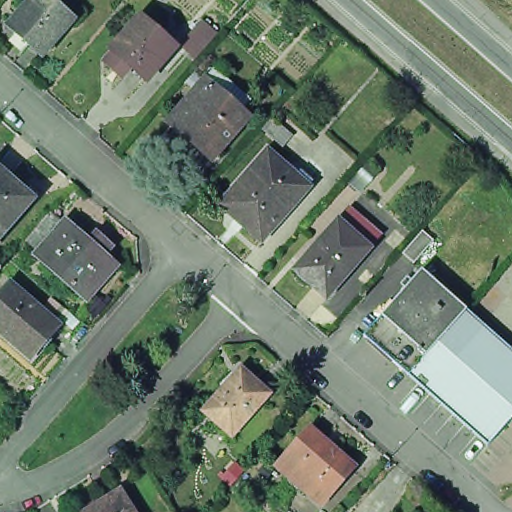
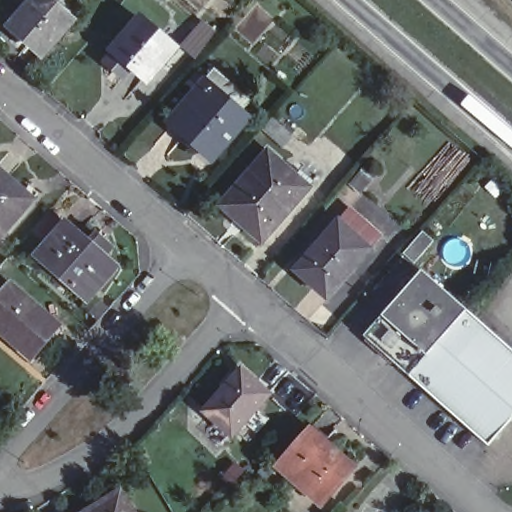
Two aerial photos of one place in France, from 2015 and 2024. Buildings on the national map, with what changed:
unchanged [(10,24),(31,0),(53,0),(72,16),(41,51),(10,24)]
unchanged [(97,57),(107,47),(110,42),(135,14),(170,44),(143,76),(126,62),(116,75),(97,57)]
unchanged [(178,39),(198,17),(213,31),(193,52),(178,39)]
unchanged [(194,150),(161,122),(198,80),(207,70),(225,86),(217,95),(234,111),(241,117),(209,153),(204,159),(194,150)]
unchanged [(269,151),(294,174),(295,175),(309,187),(301,196),(263,240),(244,225),(222,205),(228,197),(269,151)]
unchanged [(23,186),(31,192),(23,202),(0,229),(0,165),(23,186)]
unchanged [(286,275),(329,225),(339,213),(371,241),(360,253),(317,302),(286,275)]
unchanged [(82,294),(31,250),(61,217),(83,235),(90,227),(105,241),(98,249),(111,260),(82,294)]
unchanged [(512,418),(488,445),(414,380),(409,375),(363,334),(422,268),(468,308),(474,314),(511,348),(512,349),(512,418)]
unchanged [(30,358),(0,332),(0,297),(10,286),(58,327),(30,358)]
unchanged [(241,369),(269,393),(233,436),(204,411),(241,369)]
unchanged [(355,462),(323,498),(278,458),(309,422),(355,462)]
unchanged [(136,512),(75,512),(119,485),(136,512)]

